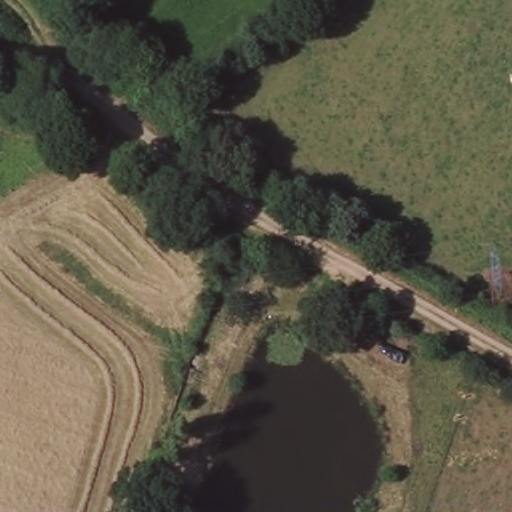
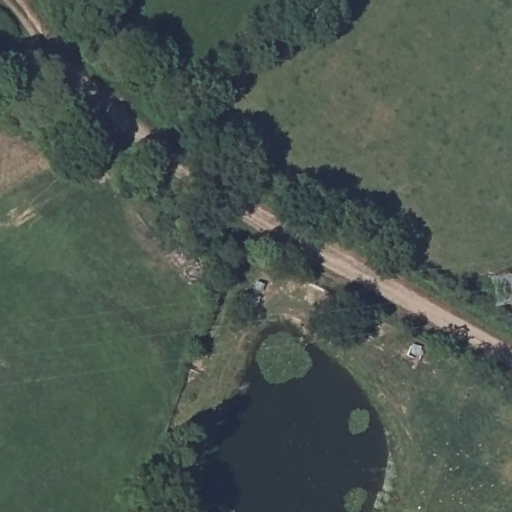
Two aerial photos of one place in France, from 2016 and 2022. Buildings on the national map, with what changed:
unchanged [(261,288),(280,302),(275,312),(252,299),(261,288)]

